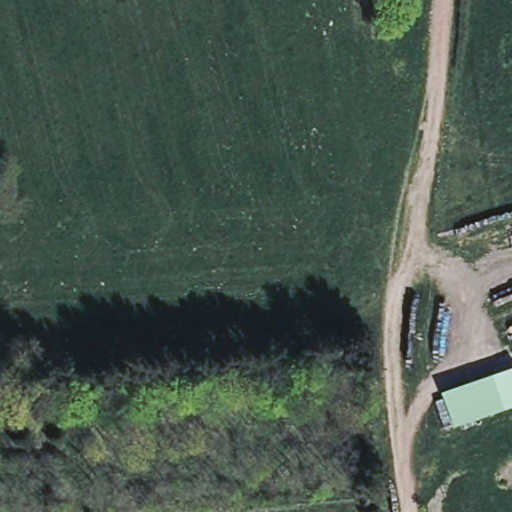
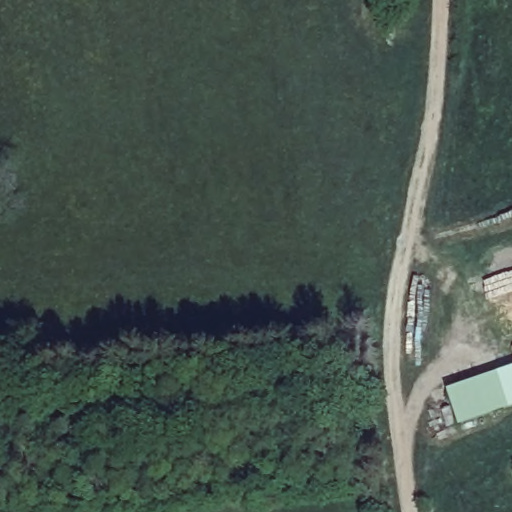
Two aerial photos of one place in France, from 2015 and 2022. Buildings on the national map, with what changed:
unchanged [(509,403),(463,421),(450,391),(495,372),(509,403)]

